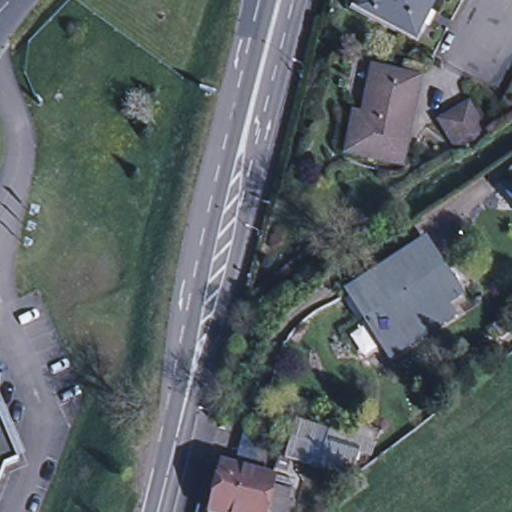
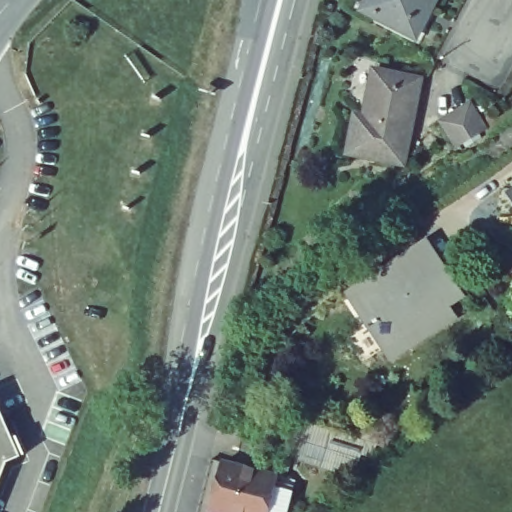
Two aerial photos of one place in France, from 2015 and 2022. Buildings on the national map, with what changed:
unchanged [(352,8),(356,0),(429,0),(412,36),(352,8)]
unchanged [(362,116),(373,70),(418,80),(400,164),(347,152),(354,115),(362,116)]
unchanged [(467,106),(482,132),(454,148),(439,122),(467,106)]
unchanged [(510,196),(512,194),(512,198),(510,196)]
unchanged [(446,275),(457,268),(470,288),(460,295),(447,302),(401,333),(399,330),(380,341),(350,294),(377,276),(374,272),(381,267),(384,271),(425,243),(446,275)]
unchanged [(458,318),(393,361),(380,341),(399,330),(401,333),(447,302),(458,318)]
unchanged [(501,321),(508,331),(499,338),(492,328),(501,321)]
unchanged [(7,462),(0,477),(0,415),(20,456),(7,462)]
unchanged [(359,439),(348,478),(281,458),(291,420),(359,439)]
unchanged [(213,507),(220,478),(222,479),(233,482),(244,484),(247,485),(252,468),(288,478),(287,479),(284,495),(287,496),(285,503),(283,512),(212,512),(213,507)]

